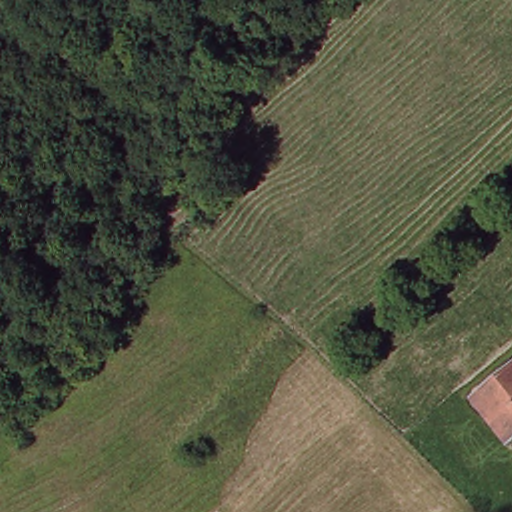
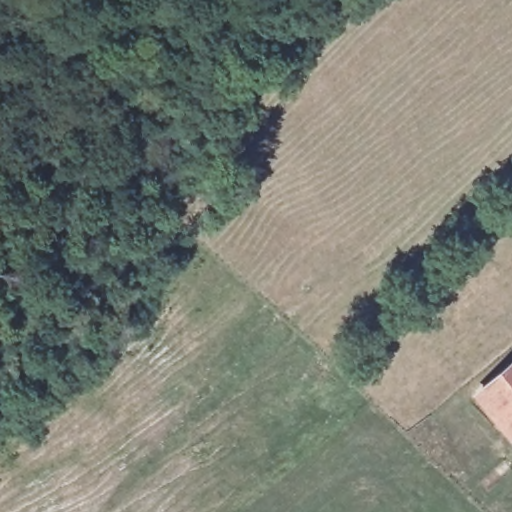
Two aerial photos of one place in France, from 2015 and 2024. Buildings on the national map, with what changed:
unchanged [(482,392),(512,366),(512,425),(482,392)]

